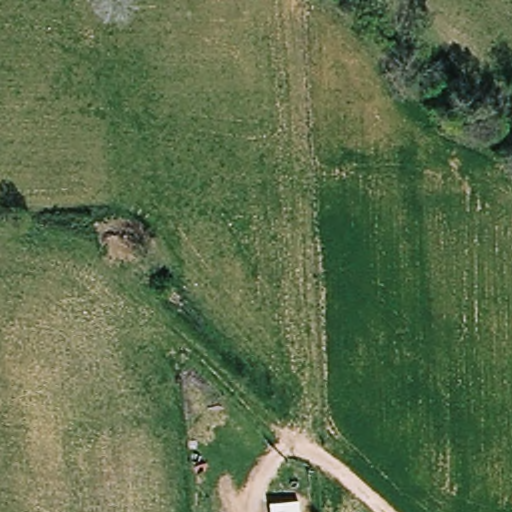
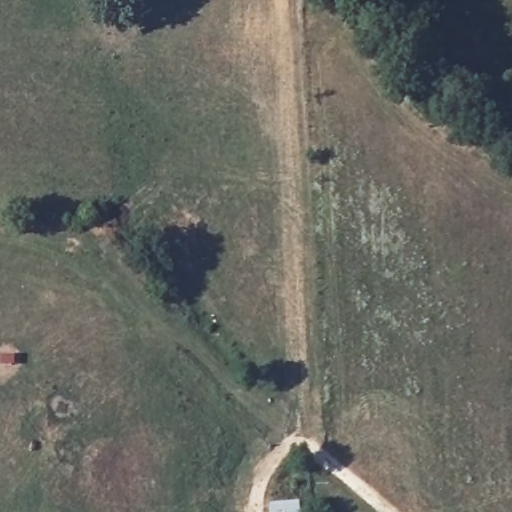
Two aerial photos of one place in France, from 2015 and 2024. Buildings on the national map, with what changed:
unchanged [(301,499),(302,512),(271,512),(271,502),(301,499)]

